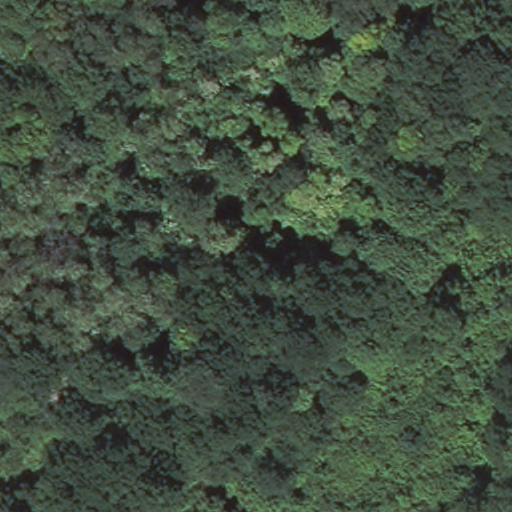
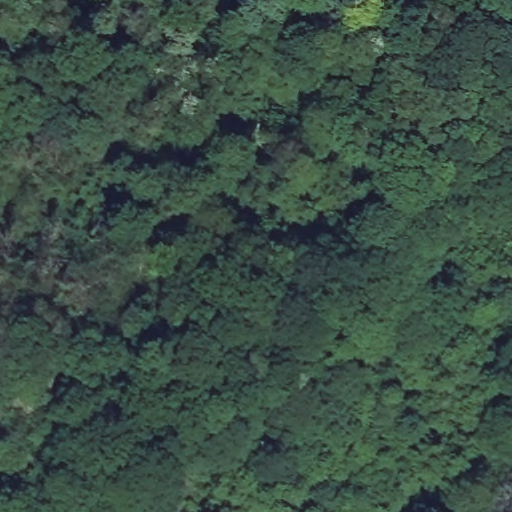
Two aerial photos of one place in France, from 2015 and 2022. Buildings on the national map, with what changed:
[]

